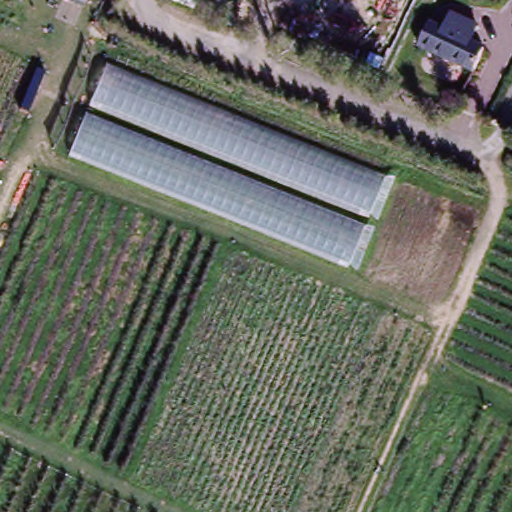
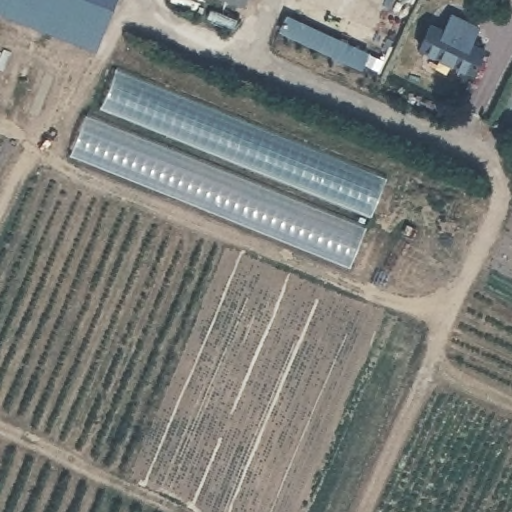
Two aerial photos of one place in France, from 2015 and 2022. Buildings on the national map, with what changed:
new [(0,12),(0,0),(115,0),(96,50),(0,12)]
unchanged [(238,0),(244,0),(243,2),(238,0)]
unchanged [(419,45),(430,19),(485,45),(473,70),(419,45)]
unchanged [(385,177),(349,267),(60,158),(99,63),(385,177)]
new [(45,72),(26,114),(19,110),(36,69),(45,72)]

